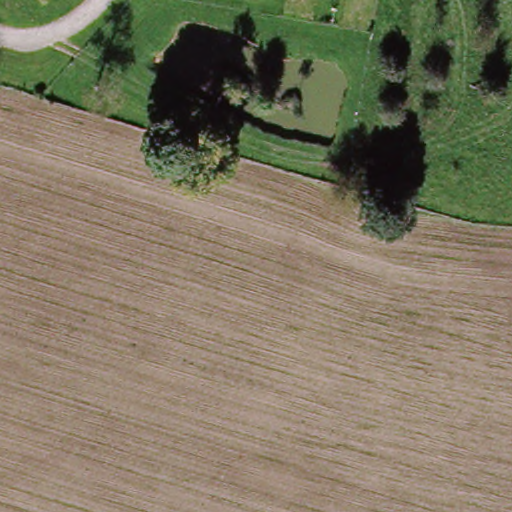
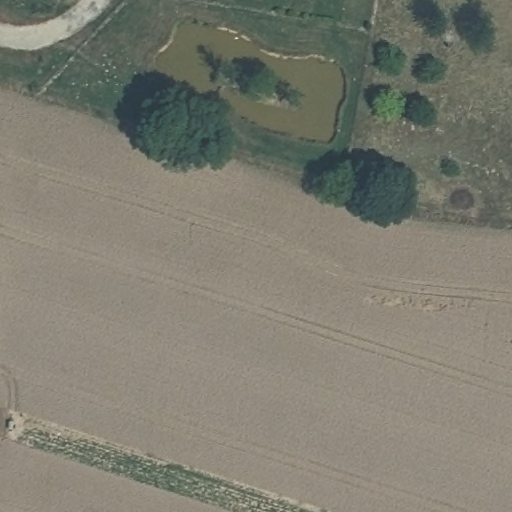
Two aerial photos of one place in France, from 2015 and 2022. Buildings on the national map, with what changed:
[]

